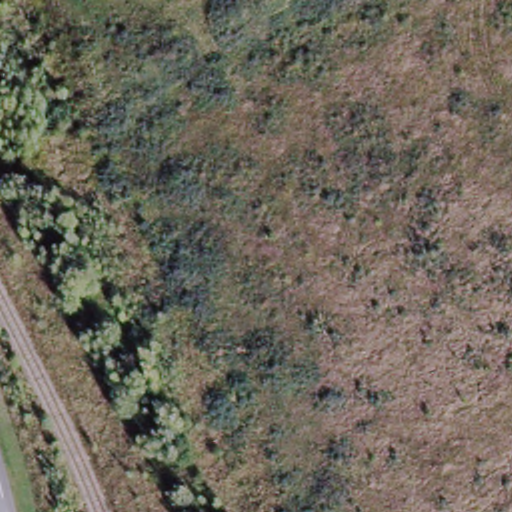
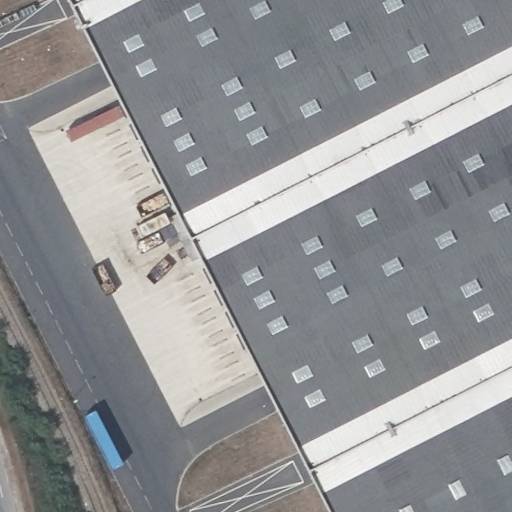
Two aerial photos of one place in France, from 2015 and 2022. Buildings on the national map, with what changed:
new [(69,0),(512,0),(512,512),(331,512),(69,0)]

